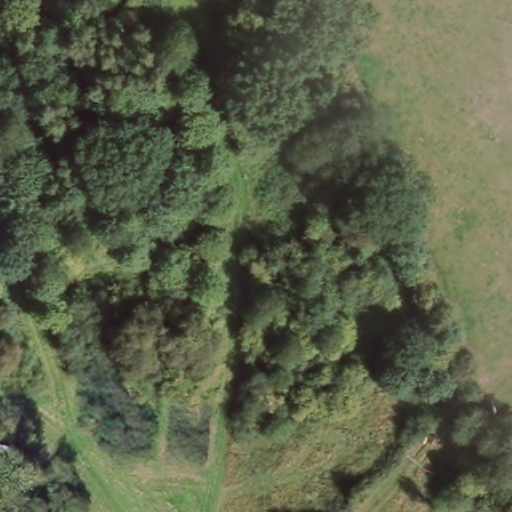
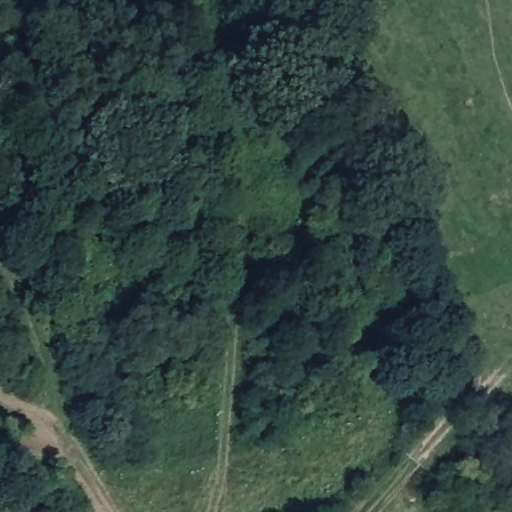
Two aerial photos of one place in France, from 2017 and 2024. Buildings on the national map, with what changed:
unchanged [(505,461),(512,468),(512,508),(509,512),(461,512),(455,494),(455,476),(464,463),(480,455),(495,456),(505,461)]

